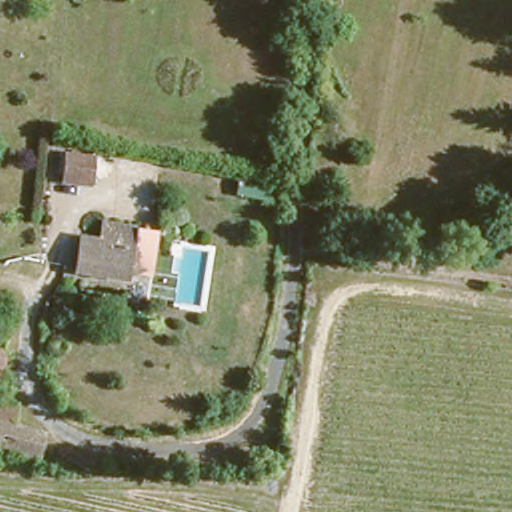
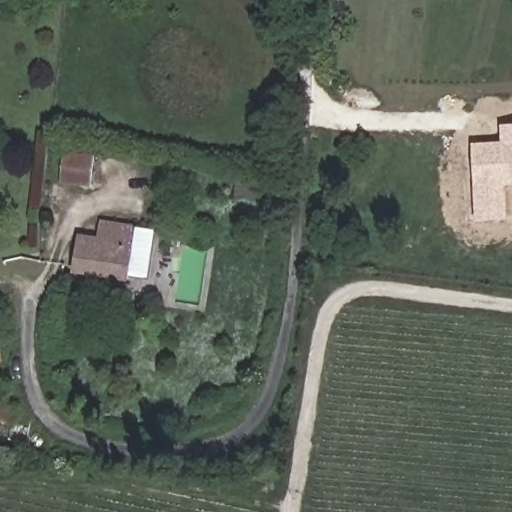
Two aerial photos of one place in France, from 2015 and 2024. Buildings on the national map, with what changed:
new [(501,125),(512,125),(512,185),(505,185),(507,220),(475,221),(471,143),(501,141),(501,125)]
unchanged [(56,175),(61,148),(92,154),(87,180),(56,175)]
unchanged [(76,228),(101,233),(105,214),(148,224),(136,276),(71,267),(76,228)]
unchanged [(0,382),(0,347),(8,349),(0,382)]
unchanged [(12,422),(42,430),(36,454),(0,445),(0,402),(16,406),(12,422)]

